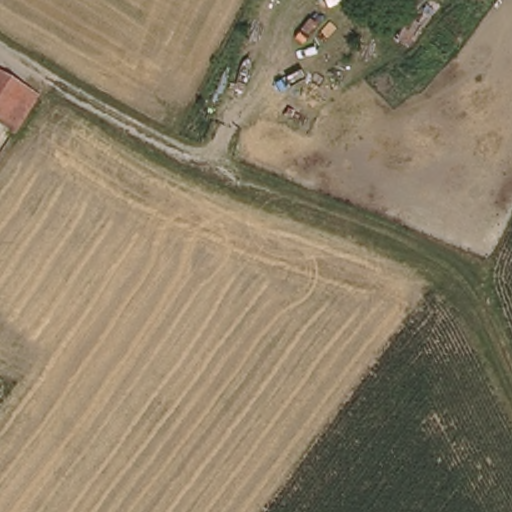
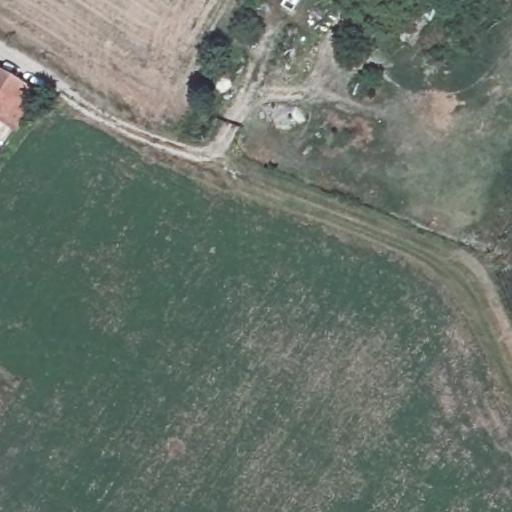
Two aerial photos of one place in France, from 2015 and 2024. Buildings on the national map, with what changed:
unchanged [(30,88),(8,124),(0,119),(0,71),(30,88)]

